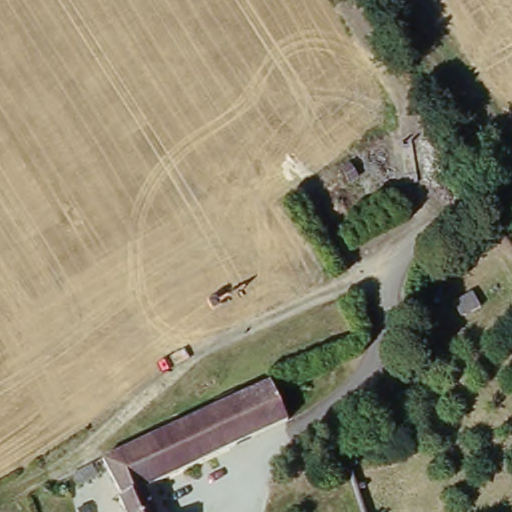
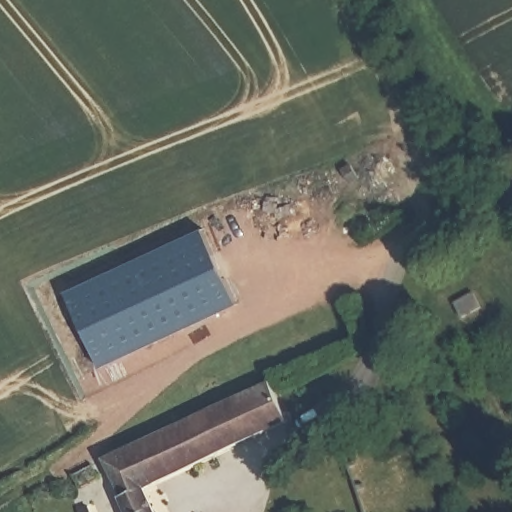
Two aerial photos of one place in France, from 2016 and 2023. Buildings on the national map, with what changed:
unchanged [(351,165),(357,177),(345,183),(338,171),(351,165)]
new [(201,229),(235,304),(96,365),(64,290),(201,229)]
unchanged [(472,292),(478,307),(460,316),(451,301),(472,292)]
unchanged [(221,410),(220,405),(239,398),(240,402),(273,387),(291,426),(149,492),(156,512),(125,512),(105,463),(221,410)]

